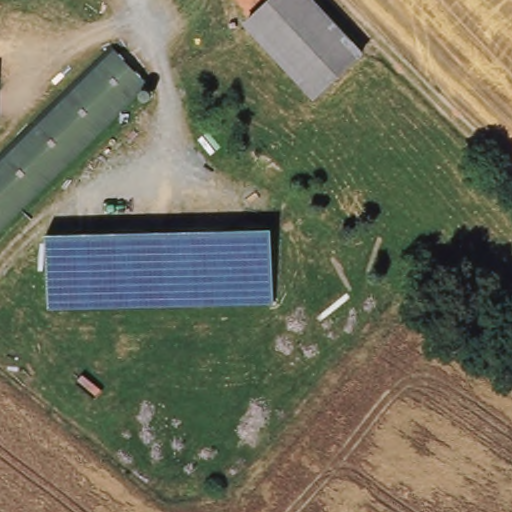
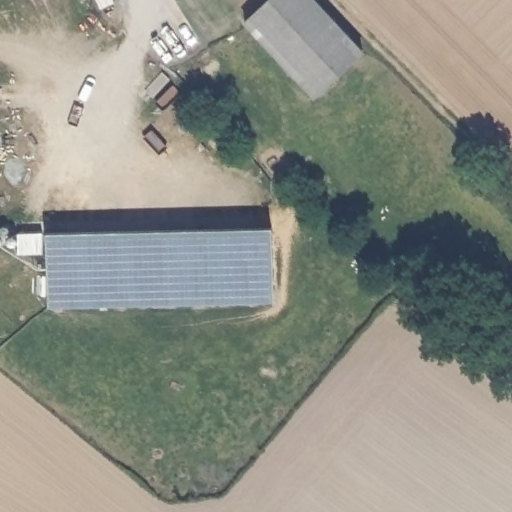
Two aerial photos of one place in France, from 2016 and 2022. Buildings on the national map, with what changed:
unchanged [(326,109),(237,20),(240,17),(258,0),(259,0),(294,38),(346,90),(329,106),(326,109)]
unchanged [(294,38),(259,0),(313,0),(374,62),(346,90),(294,38)]
demolished [(150,83),(13,218),(0,206),(0,161),(115,48),(150,83)]
demolished [(0,232),(0,206),(13,218),(0,232)]
unchanged [(274,303),(49,310),(45,233),(273,227),(274,303)]

